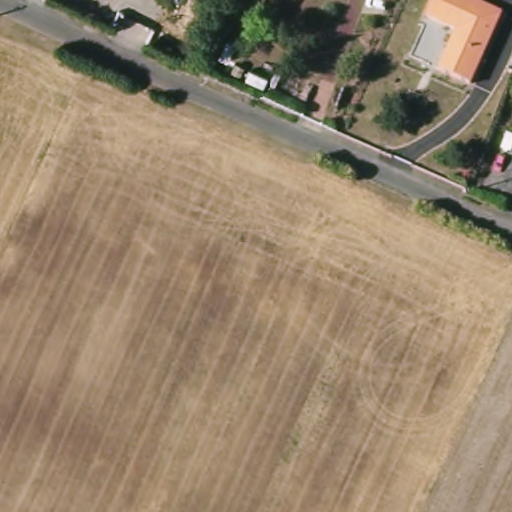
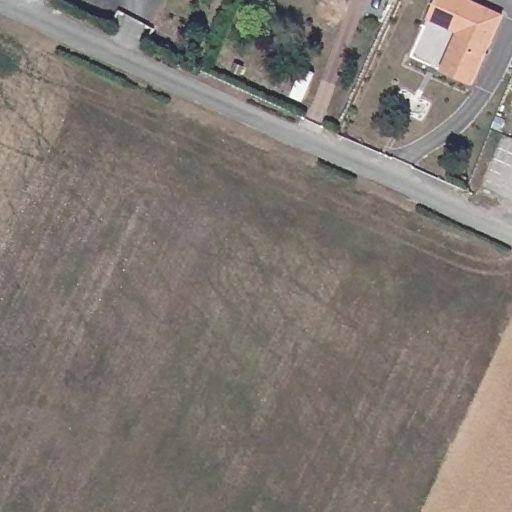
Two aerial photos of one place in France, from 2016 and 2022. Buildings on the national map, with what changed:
unchanged [(501,15),(470,83),(441,69),(460,29),(427,15),(434,0),(470,0),(501,15)]

